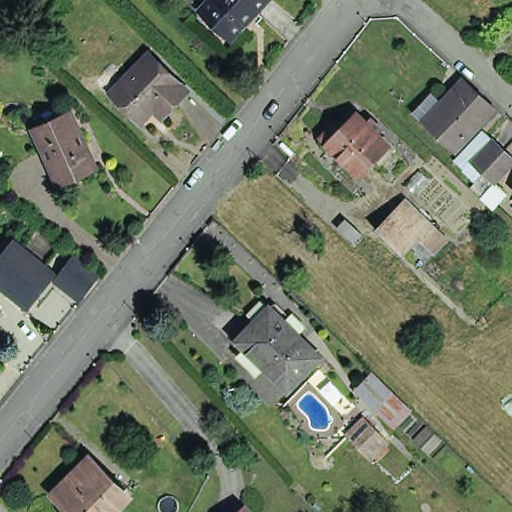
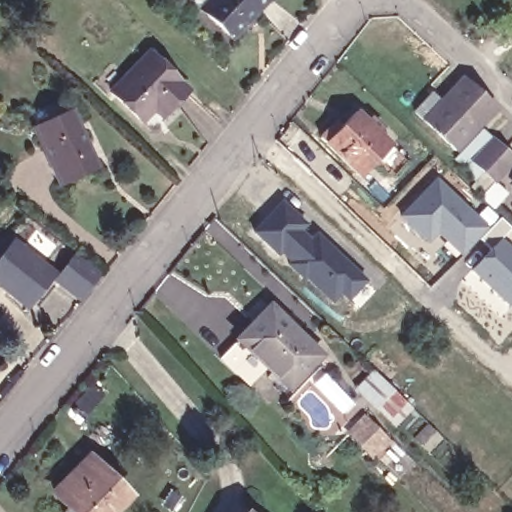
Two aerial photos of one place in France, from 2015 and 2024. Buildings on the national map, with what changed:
unchanged [(267,0),(264,4),(232,38),(201,10),(209,0),(267,0)]
unchanged [(115,80),(137,58),(147,47),(187,86),(177,96),(165,109),(157,101),(147,111),(140,117),(110,86),(115,80)]
unchanged [(500,114),(460,156),(428,126),(419,118),(435,101),(444,109),(467,84),(500,114)]
unchanged [(65,119),(75,115),(85,137),(100,169),(64,186),(39,131),(65,119)]
unchanged [(324,143),(337,129),(343,135),(360,118),(370,129),(375,124),(385,134),(380,139),(394,151),(364,182),(324,143)]
unchanged [(475,190),(475,189),(476,188),(480,184),(460,166),(487,136),(497,145),(508,155),(512,159),(512,173),(499,187),(500,189),(507,195),(495,208),(485,199),(475,190)]
new [(489,230),(464,256),(441,234),(429,246),(402,218),(438,180),(489,230)]
new [(282,197),(368,280),(347,302),(340,296),(332,304),(294,271),(279,254),(276,256),(251,231),(282,197)]
demolished [(434,254),(416,239),(402,255),(389,243),(375,230),(405,200),(431,224),(447,239),(434,254)]
unchanged [(0,285),(0,253),(15,235),(56,274),(77,250),(105,272),(82,301),(55,281),(29,308),(0,285)]
new [(512,245),(512,307),(510,308),(470,269),(503,237),(512,245)]
unchanged [(243,341),(273,309),(323,355),(292,387),(243,341)]
unchanged [(397,427),(362,393),(378,376),(413,409),(397,427)]
unchanged [(347,435),(362,419),(385,440),(369,456),(347,435)]
unchanged [(69,500),(57,487),(90,453),(127,489),(113,503),(117,507),(113,512),(61,512),(60,510),(62,507),(69,500)]

